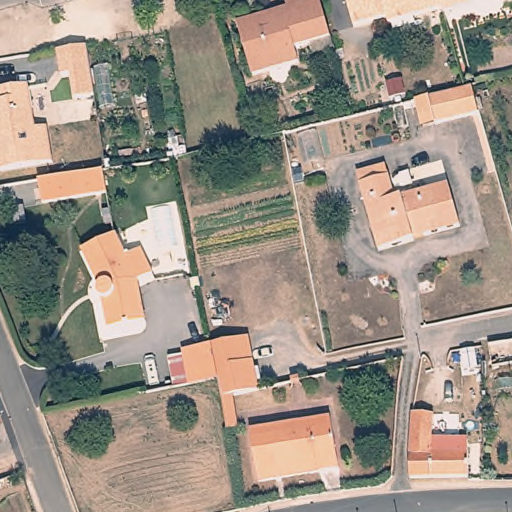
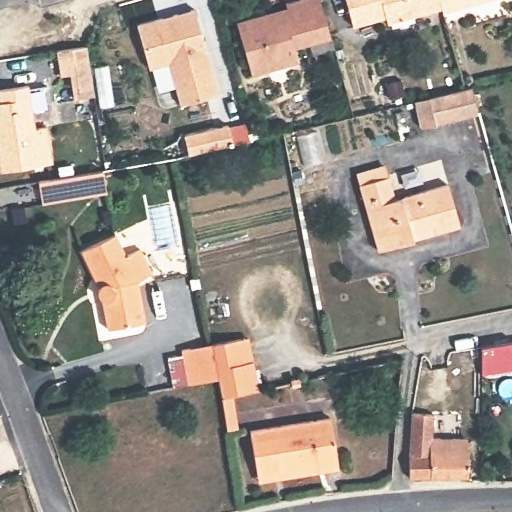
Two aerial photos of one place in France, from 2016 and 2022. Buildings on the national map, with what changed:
unchanged [(332,33),(296,44),(300,58),(252,71),(237,18),(268,9),(269,13),(289,7),(287,0),(322,0),(332,33)]
unchanged [(388,24),(387,18),(354,27),(346,0),(440,0),(442,9),(388,24)]
unchanged [(443,12),(442,9),(440,0),(488,0),(443,12)]
new [(174,16),(196,10),(220,95),(182,106),(171,64),(151,70),(139,26),(164,19),(174,16)]
unchanged [(96,97),(76,100),(72,76),(62,77),(57,52),(88,47),(96,97)]
unchanged [(2,172),(0,163),(0,103),(0,91),(29,86),(37,129),(48,128),(54,164),(2,172)]
unchanged [(466,89),(472,87),(479,115),(435,125),(422,129),(415,101),(428,98),(466,89)]
new [(230,126),(234,145),(191,156),(186,137),(230,126)]
unchanged [(415,237),(379,247),(360,180),(357,170),(386,162),(389,172),(396,195),(448,180),(461,222),(426,232),(414,235),(415,237)]
unchanged [(107,194),(44,204),(40,182),(104,171),(107,194)]
unchanged [(102,299),(101,298),(98,293),(100,286),(82,251),(116,235),(127,256),(141,249),(153,274),(139,281),(147,322),(109,330),(102,299)]
unchanged [(228,430),(223,398),(220,379),(212,344),(242,339),(250,337),(254,361),(260,390),(233,396),(238,428),(228,430)]
unchanged [(512,343),(512,365),(492,368),(489,346),(512,343)]
unchanged [(170,359),(184,356),(183,350),(212,344),(220,379),(190,385),(175,388),(170,359)]
unchanged [(465,454),(473,454),(474,477),(416,478),(415,456),(418,413),(439,415),(437,444),(465,444),(465,454)]
unchanged [(258,476),(251,431),(331,418),(339,469),(320,472),(259,482),(258,476)]

